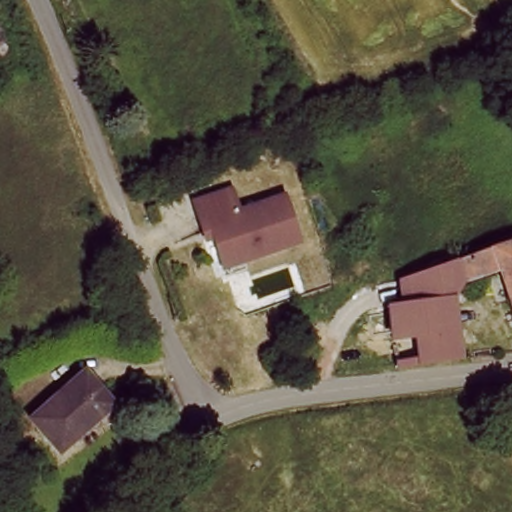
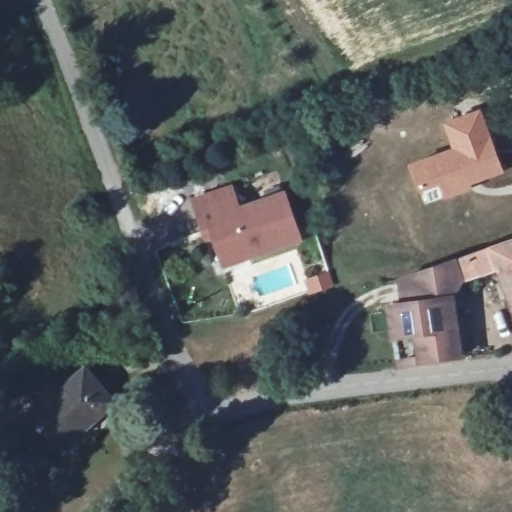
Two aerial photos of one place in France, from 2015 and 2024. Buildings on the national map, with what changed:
new [(450,146),(441,121),(481,107),(505,173),(473,186),(474,189),(424,205),(407,162),(450,146)]
unchanged [(314,255),(235,287),(217,240),(212,243),(199,209),(282,176),(314,255)]
unchanged [(465,283),(460,275),(456,267),(512,247),(512,305),(502,271),(465,283)]
unchanged [(460,275),(465,283),(456,301),(421,304),(421,280),(460,275)]
unchanged [(456,301),(464,359),(401,366),(391,308),(421,304),(456,301)]
unchanged [(121,406),(96,431),(88,423),(62,447),(39,420),(91,373),(121,406)]

